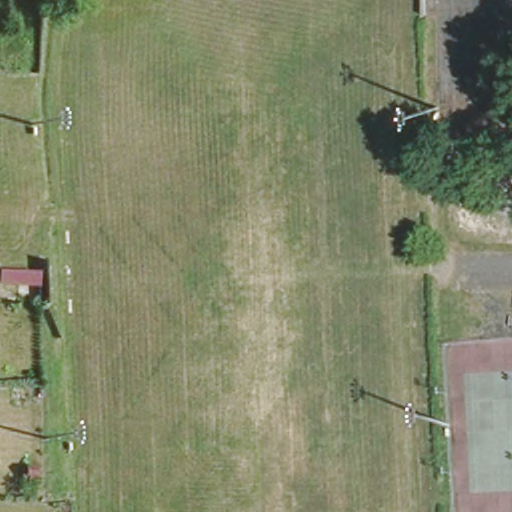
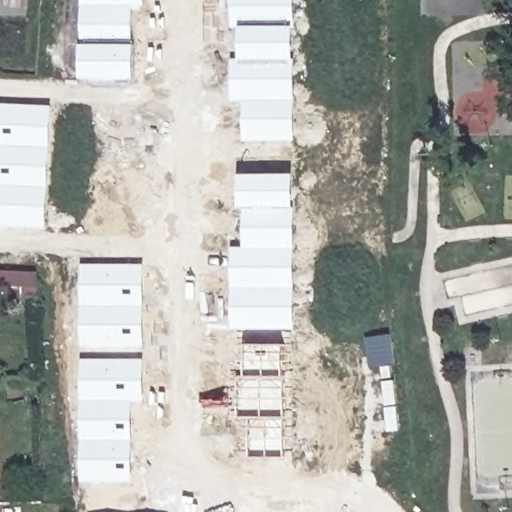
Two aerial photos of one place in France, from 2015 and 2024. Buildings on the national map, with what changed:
new [(135,80),(82,79),(82,44),(82,0),(146,0),(146,7),(133,6),(136,45),(135,80)]
new [(244,102),(233,102),(232,60),(242,60),(241,28),(233,28),(233,0),(296,0),(296,27),(296,61),(296,142),(245,141),(244,102)]
new [(2,104),(53,106),(48,227),(0,225),(0,149),(2,104)]
new [(247,249),(246,207),(242,207),(242,174),(295,175),(297,208),(297,330),(233,330),(232,248),(247,249)]
new [(82,348),(82,264),(145,265),(145,347),(82,348)]
new [(300,457),(246,457),(244,418),(235,418),(235,375),(243,375),(242,345),(295,344),(300,457)]
new [(82,482),(81,359),(144,359),(145,402),(133,401),(134,482),(82,482)]

